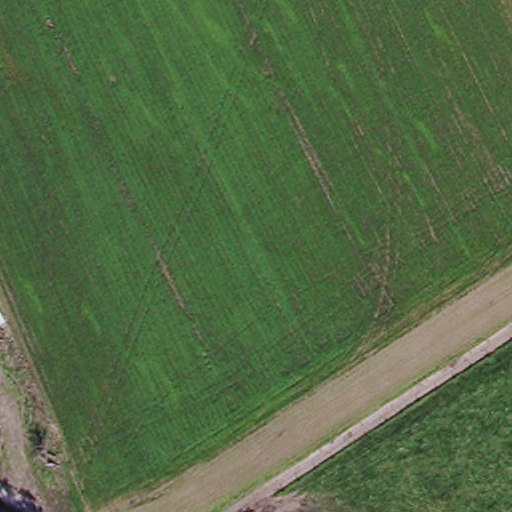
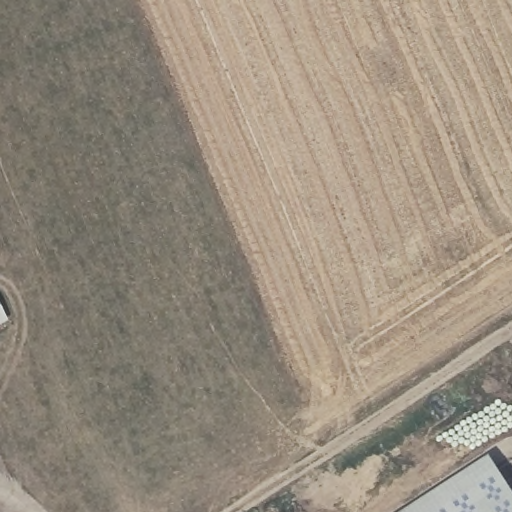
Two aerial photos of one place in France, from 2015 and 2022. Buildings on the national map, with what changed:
unchanged [(0,309),(8,326),(0,329),(0,309)]
new [(407,512),(491,458),(512,490),(512,512),(407,512)]

